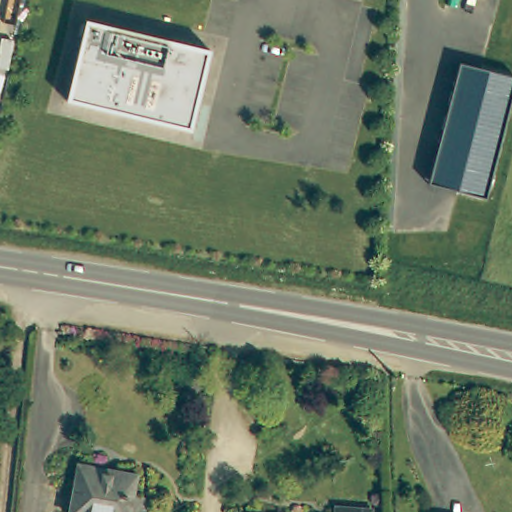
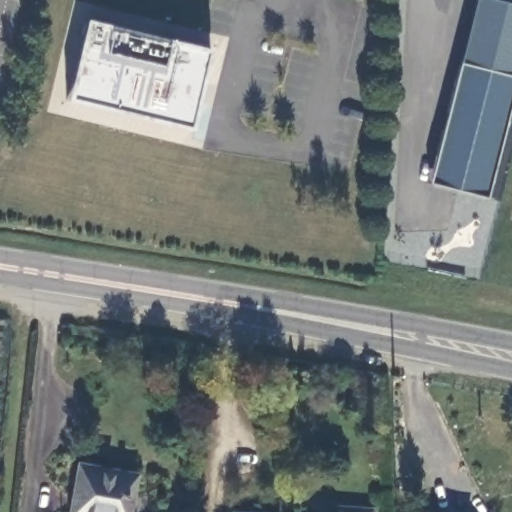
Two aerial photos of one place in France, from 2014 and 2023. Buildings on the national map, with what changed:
new [(460,65),(476,0),(498,0),(512,4),(512,77),(460,65)]
unchanged [(211,49),(192,131),(66,101),(86,19),(211,49)]
unchanged [(512,77),(512,91),(484,197),(428,184),(460,65),(512,77)]
unchanged [(65,512),(74,464),(131,474),(125,512),(65,512)]
unchanged [(373,511),(373,512),(339,512),(339,508),(373,511)]

